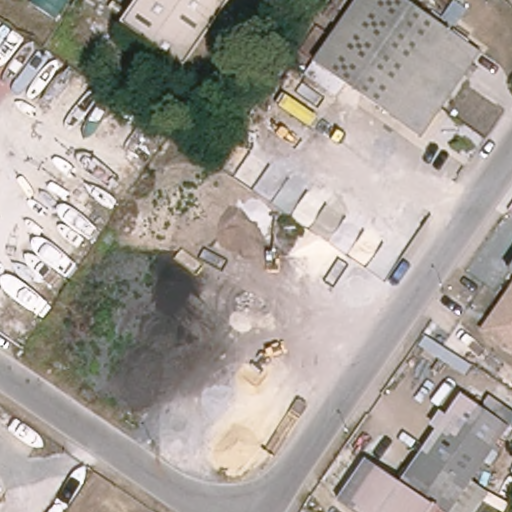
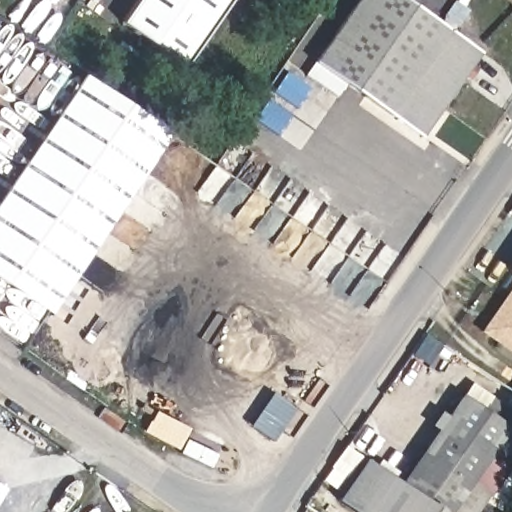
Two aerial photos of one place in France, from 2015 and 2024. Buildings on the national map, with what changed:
unchanged [(185,62),(122,18),(135,0),(228,0),(185,62)]
unchanged [(359,0),(405,0),(480,51),(421,136),(315,64),(359,0)]
new [(51,314),(0,280),(0,197),(84,74),(172,132),(51,314)]
unchanged [(512,269),(512,276),(509,273),(512,269)]
unchanged [(512,285),(512,353),(482,332),(512,285)]
unchanged [(502,406),(512,413),(512,422),(471,480),(490,494),(478,512),(443,512),(440,510),(403,484),(462,398),(493,418),(502,406)]
unchanged [(351,512),(336,502),(365,460),(403,484),(440,510),(439,512),(351,512)]

